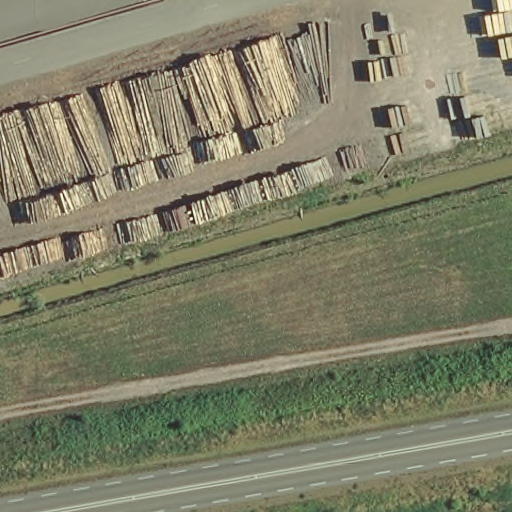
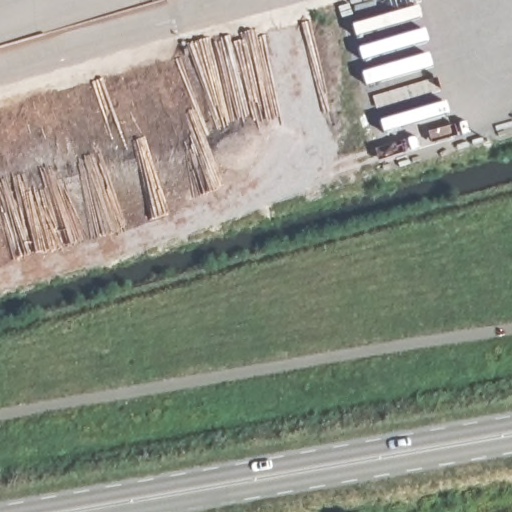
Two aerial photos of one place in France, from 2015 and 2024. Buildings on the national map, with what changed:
[]

